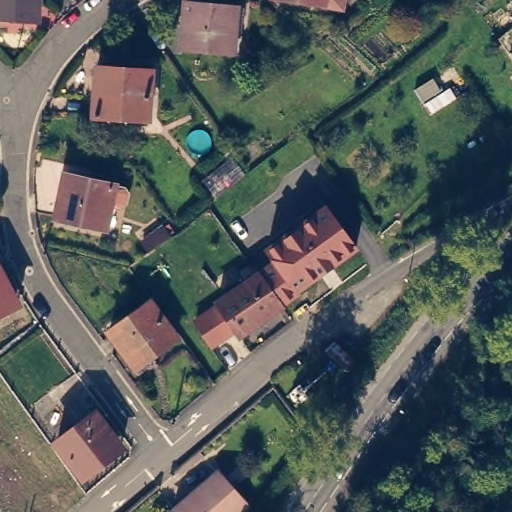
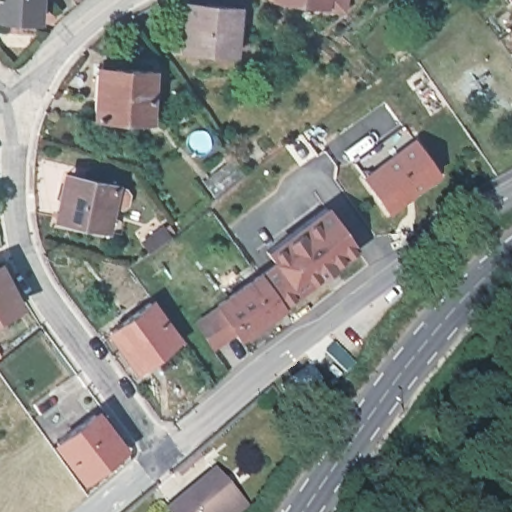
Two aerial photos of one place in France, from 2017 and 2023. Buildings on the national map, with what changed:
unchanged [(0,19),(0,0),(44,0),(42,22),(0,19)]
unchanged [(182,45),(186,0),(197,0),(236,3),(232,49),(182,45)]
unchanged [(312,0),(343,0),(342,4),(312,0)]
unchanged [(509,0),(512,0),(512,5),(509,0)]
unchanged [(97,63),(152,66),(149,117),(94,113),(97,63)]
new [(388,213),(360,176),(414,138),(441,176),(388,213)]
unchanged [(217,200),(202,182),(234,158),(247,175),(217,200)]
unchanged [(113,186),(120,188),(117,201),(110,200),(105,225),(56,215),(66,170),(114,180),(113,186)]
unchanged [(259,276),(267,271),(276,264),(267,252),(327,208),(356,248),(332,266),(333,268),(332,269),(332,268),(321,276),(322,277),(321,277),(319,275),(297,291),(298,293),(288,301),(281,306),(282,308),(240,338),(217,303),(259,276)]
unchanged [(0,310),(0,270),(17,302),(0,310)]
unchanged [(176,335),(136,364),(109,327),(149,298),(176,335)]
new [(211,351),(192,323),(219,306),(237,334),(211,351)]
unchanged [(322,352),(332,341),(350,357),(340,369),(322,352)]
unchanged [(121,444),(82,473),(56,437),(95,409),(121,444)]
unchanged [(171,509),(218,469),(246,501),(233,512),(173,512),(171,509)]

